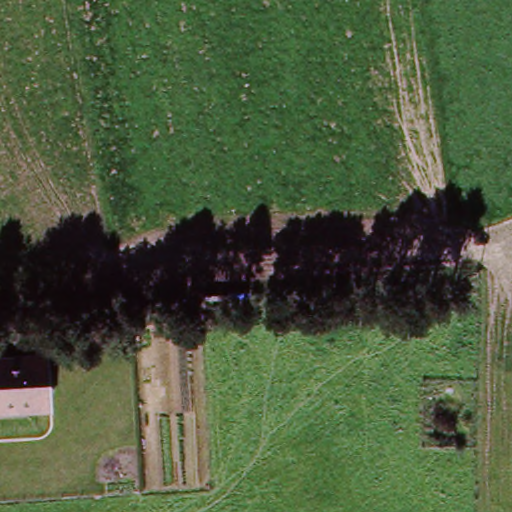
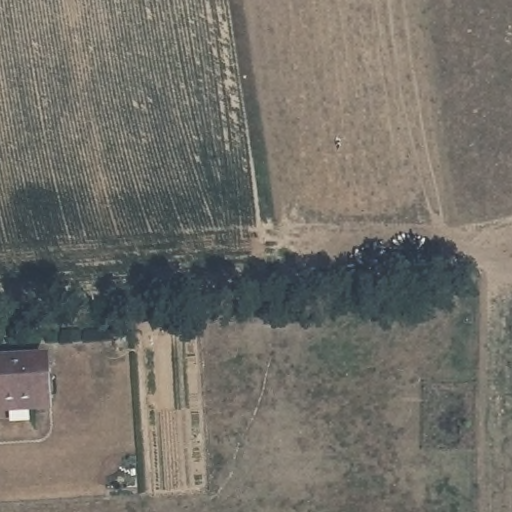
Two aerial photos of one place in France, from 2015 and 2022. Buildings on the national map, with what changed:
unchanged [(47,415),(28,416),(27,406),(0,408),(0,360),(44,357),(47,415)]

